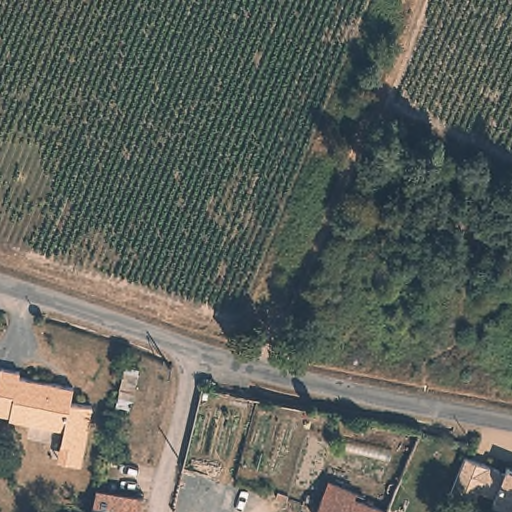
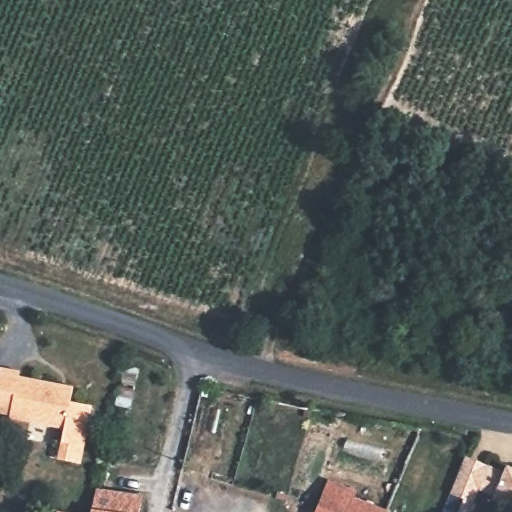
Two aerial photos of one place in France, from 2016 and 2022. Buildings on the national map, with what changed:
unchanged [(60,457),(64,440),(67,426),(14,413),(14,410),(0,407),(0,391),(7,362),(26,367),(25,372),(82,386),(79,400),(101,406),(91,447),(87,463),(60,457)]
unchanged [(496,490),(480,483),(474,497),(452,487),(467,450),(506,467),(509,461),(512,462),(512,499),(495,493),(496,490)]
unchanged [(326,483),(357,494),(354,501),(348,512),(314,512),(315,511),(326,483)]
unchanged [(96,512),(90,511),(95,490),(142,498),(139,512),(96,512)]
unchanged [(386,512),(348,512),(354,501),(386,512)]
unchanged [(512,506),(512,512),(509,512),(511,509),(512,506)]
unchanged [(96,512),(90,512),(90,511),(96,512)]

